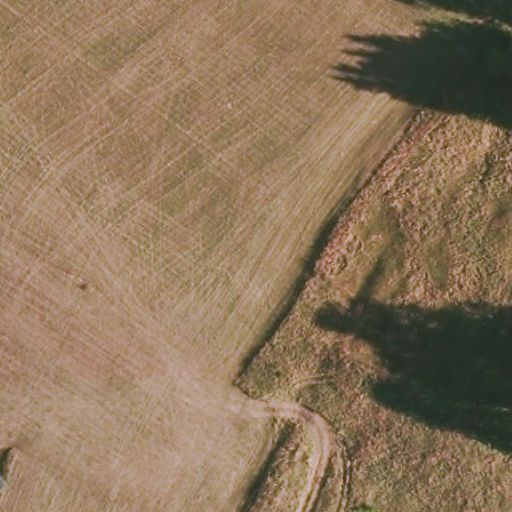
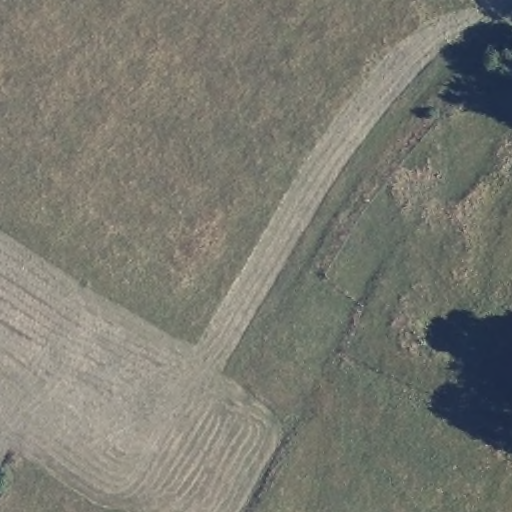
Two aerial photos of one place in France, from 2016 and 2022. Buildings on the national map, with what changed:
[]

